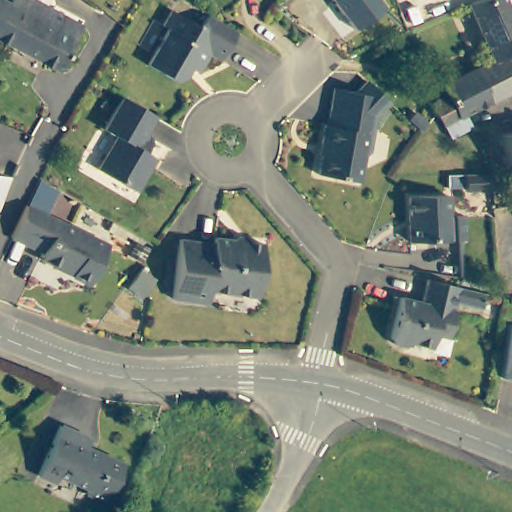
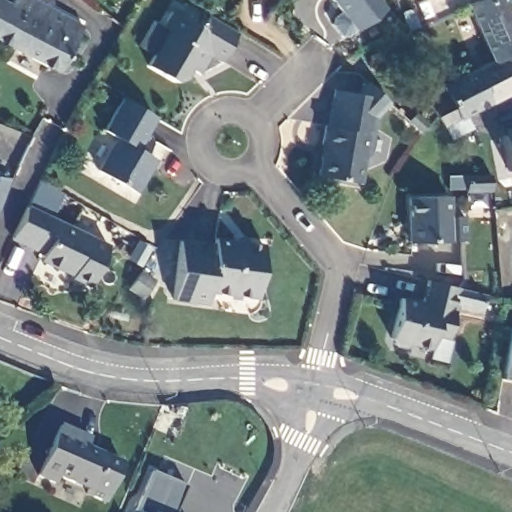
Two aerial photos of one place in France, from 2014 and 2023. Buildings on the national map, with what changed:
unchanged [(25,0),(35,0),(93,31),(68,77),(0,40),(0,0),(1,0),(20,10),(25,0)]
unchanged [(330,0),(379,0),(386,9),(353,30),(330,0)]
unchanged [(491,106),(474,74),(492,65),(467,10),(490,0),(503,0),(512,20),(512,96),(491,106)]
unchanged [(174,76),(148,61),(169,25),(164,21),(172,6),(201,24),(209,10),(210,11),(236,26),(220,55),(209,47),(197,67),(189,62),(182,74),(174,76)]
unchanged [(444,130),(439,119),(433,107),(440,104),(435,94),(474,74),(491,106),(465,120),(471,132),(451,143),(444,130)]
unchanged [(143,130),(150,134),(151,137),(145,148),(155,154),(135,187),(98,166),(117,133),(104,125),(122,93),(125,95),(153,111),(143,130)]
unchanged [(362,152),(358,177),(318,171),(323,140),(321,140),(324,120),(327,121),(330,105),(373,111),(367,149),(362,152)]
unchanged [(512,133),(512,170),(507,170),(501,135),(512,133)]
unchanged [(486,192),(461,194),(461,191),(443,192),(442,180),(485,178),(486,192)]
unchanged [(460,245),(445,245),(406,246),(404,201),(443,200),(444,220),(459,220),(460,245)]
unchanged [(113,240),(95,278),(45,255),(48,249),(16,234),(31,202),(113,240)]
unchanged [(214,285),(212,297),(177,293),(184,235),(218,240),(219,233),(267,239),(261,290),(214,285)]
unchanged [(485,288),(481,303),(455,296),(447,331),(433,328),(430,342),(411,337),(405,341),(394,338),(390,332),(399,292),(422,297),(427,275),(459,282),(485,288)]
unchanged [(512,338),(512,374),(507,373),(512,338)]
unchanged [(90,440),(86,448),(123,465),(105,502),(85,493),(86,489),(59,475),(56,483),(38,475),(61,426),(90,440)]
new [(176,512),(139,512),(135,510),(152,472),(185,486),(176,512)]

